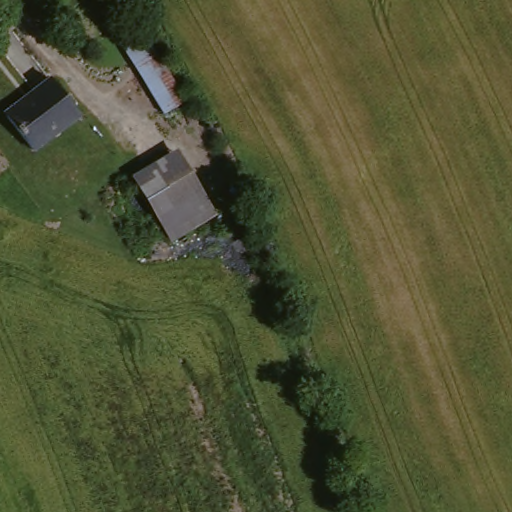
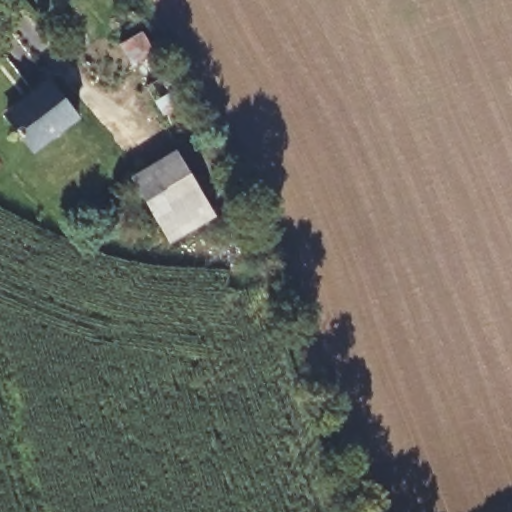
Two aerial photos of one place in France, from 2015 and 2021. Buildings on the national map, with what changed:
unchanged [(177,108),(159,118),(120,46),(139,36),(177,108)]
unchanged [(6,118),(35,97),(32,91),(49,80),(76,119),(33,154),(6,118)]
unchanged [(130,184),(172,158),(192,194),(149,218),(130,184)]
unchanged [(206,219),(163,242),(149,218),(192,194),(206,219)]

